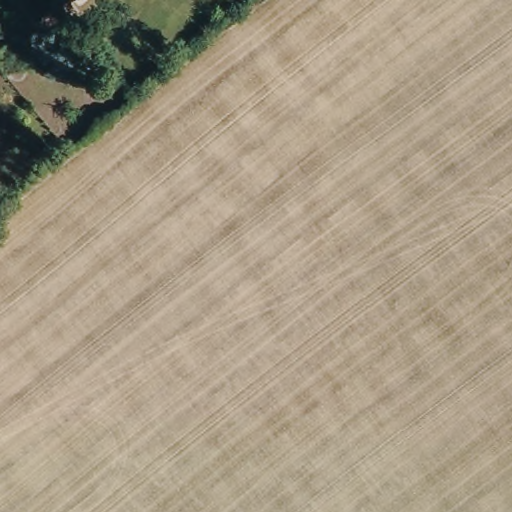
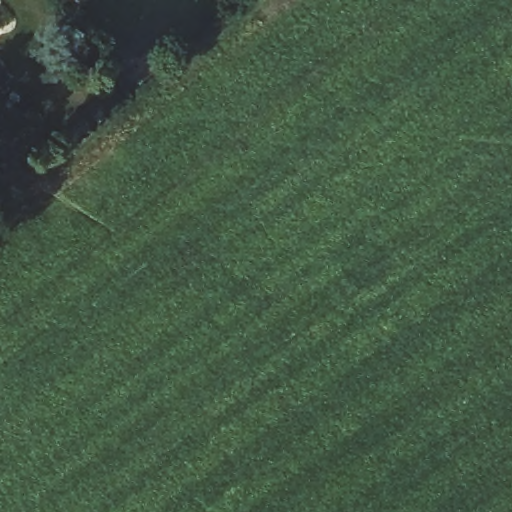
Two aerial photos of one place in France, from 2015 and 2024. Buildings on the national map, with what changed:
unchanged [(72,0),(70,1),(69,0),(72,0)]

